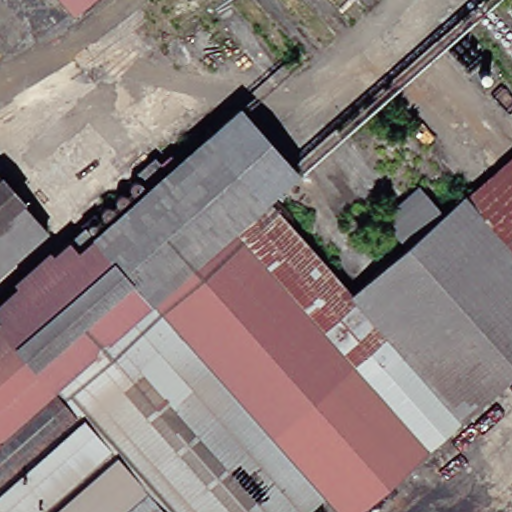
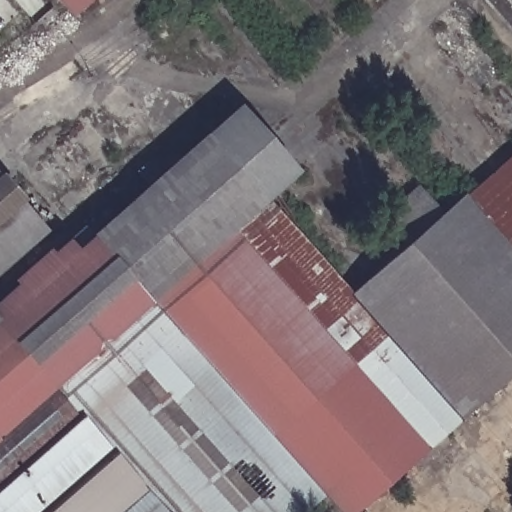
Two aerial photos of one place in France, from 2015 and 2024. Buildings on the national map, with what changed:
unchanged [(98,0),(75,19),(59,0),(98,0)]
unchanged [(105,0),(107,0),(105,1),(105,0)]
unchanged [(205,136),(230,111),(292,180),(265,204),(205,136)]
unchanged [(83,243),(87,246),(205,136),(265,204),(347,297),(450,411),(335,512),(0,512),(0,318),(83,243)]
unchanged [(347,297),(397,254),(381,234),(420,201),(436,219),(512,154),(512,369),(457,419),(450,411),(347,297)]
unchanged [(44,247),(0,287),(0,199),(44,247)]

